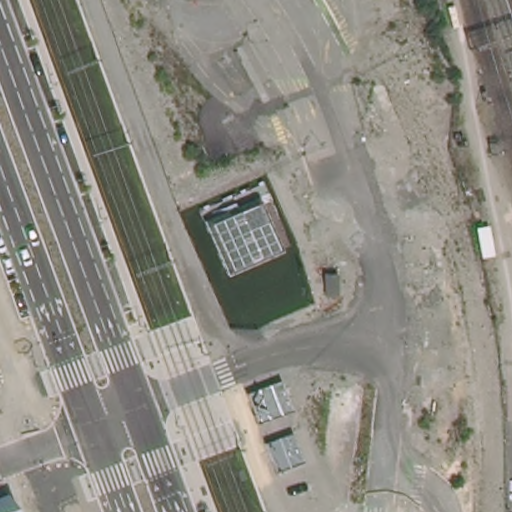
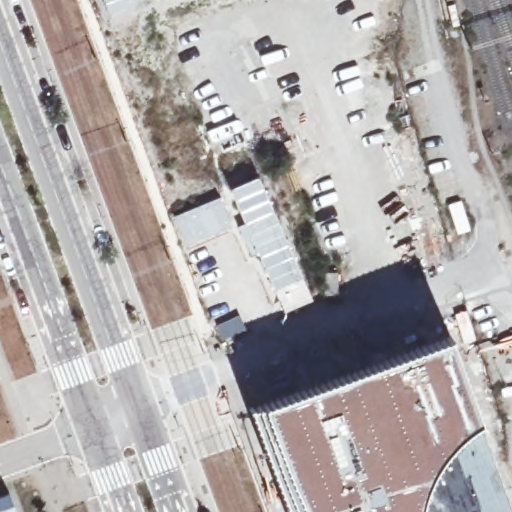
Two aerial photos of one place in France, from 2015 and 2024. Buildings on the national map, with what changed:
unchanged [(203,222),(256,200),(279,251),(228,275),(203,222)]
new [(304,276),(314,300),(285,313),(273,290),(304,276)]
new [(449,333),(475,403),(482,426),(450,448),(439,460),(429,475),(424,488),(419,505),(419,512),(306,512),(306,511),(253,405),(449,333)]
new [(512,510),(512,512),(472,512),(459,465),(450,448),(482,426),(512,510)]
unchanged [(13,503),(16,512),(0,512),(0,508),(13,503)]

